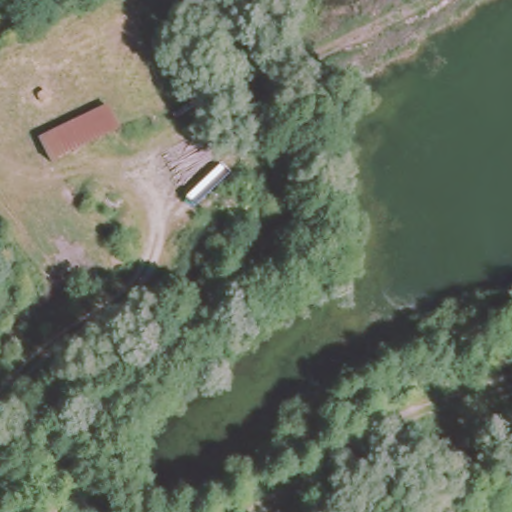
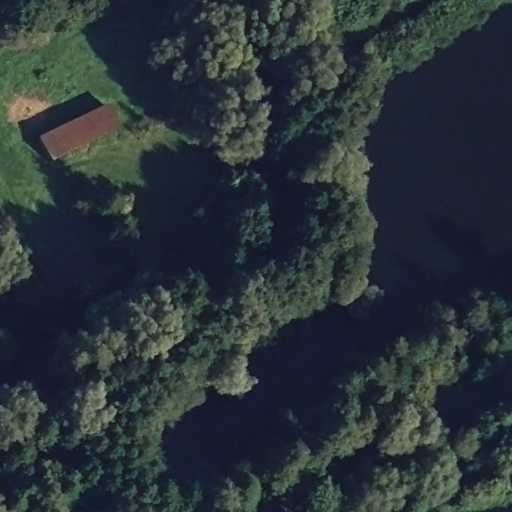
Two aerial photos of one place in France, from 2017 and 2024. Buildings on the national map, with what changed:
unchanged [(244,63),(268,56),(272,67),(248,76),(244,63)]
unchanged [(34,137),(99,103),(111,130),(44,162),(34,137)]

